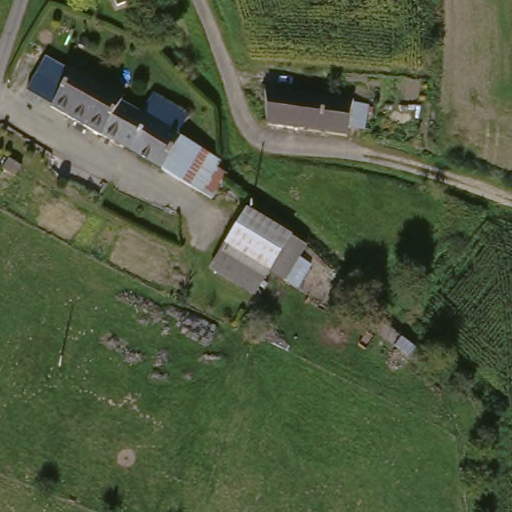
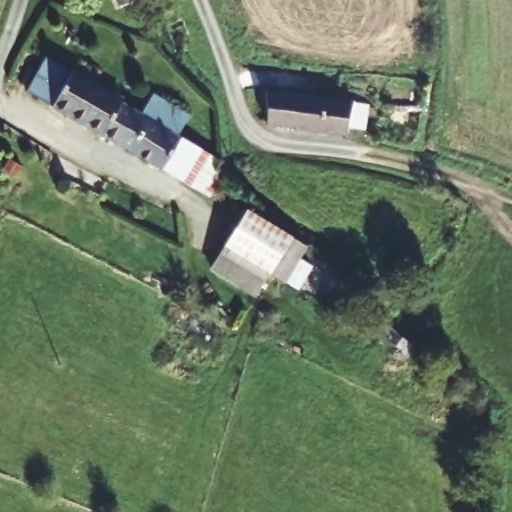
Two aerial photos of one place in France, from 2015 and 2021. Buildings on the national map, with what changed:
unchanged [(121,0),(135,0),(123,5),(121,0)]
unchanged [(126,100),(105,132),(57,104),(77,68),(128,97),(126,100)]
unchanged [(324,89),(363,96),(360,127),(359,131),(309,123),(278,118),(279,101),(281,85),(324,89)]
unchanged [(218,192),(207,186),(205,191),(105,132),(126,100),(144,110),(155,91),(186,110),(176,129),(222,156),(220,161),(231,169),(218,192)]
unchanged [(309,254),(303,265),(314,273),(301,295),(229,252),(249,217),(309,254)]

